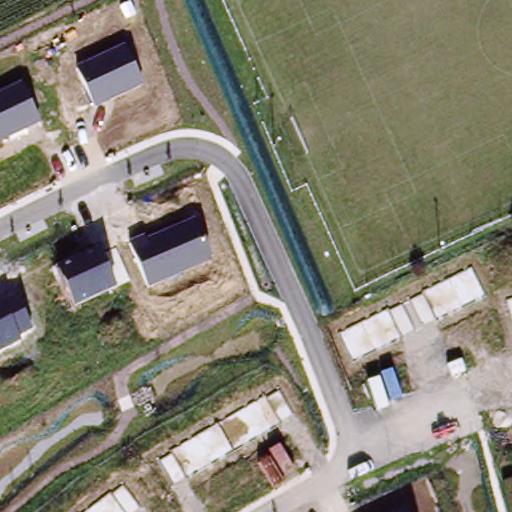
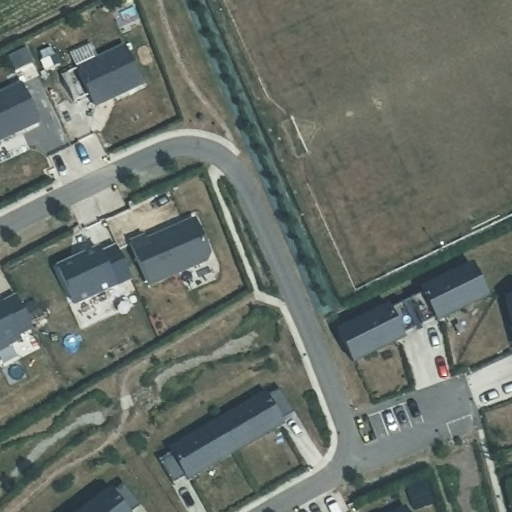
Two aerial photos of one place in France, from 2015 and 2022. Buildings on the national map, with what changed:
unchanged [(126,47),(143,84),(95,105),(78,69),(126,47)]
unchanged [(24,84),(40,122),(0,139),(0,94),(24,84)]
unchanged [(195,219),(211,260),(149,285),(131,244),(195,219)]
unchanged [(101,251),(116,285),(74,302),(59,268),(101,251)]
new [(388,305),(390,309),(423,295),(420,290),(473,263),(490,298),(437,323),(435,317),(402,332),(405,339),(352,365),(337,328),(388,305)]
unchanged [(17,293),(32,326),(19,335),(22,341),(0,352),(0,302),(17,293)]
new [(512,296),(512,327),(505,298),(512,296)]
new [(171,452),(169,447),(265,392),(267,396),(280,390),(293,413),(281,418),(285,425),(189,482),(186,477),(174,485),(159,461),(171,452)]
new [(112,493),(125,483),(140,506),(132,512),(81,512),(110,490),(112,493)]
unchanged [(409,512),(402,512),(407,510),(409,512)]

